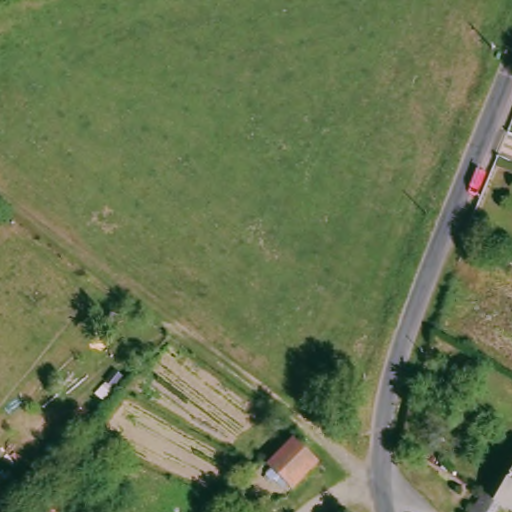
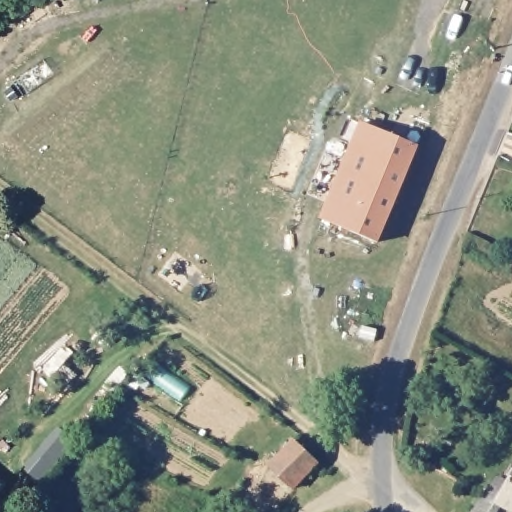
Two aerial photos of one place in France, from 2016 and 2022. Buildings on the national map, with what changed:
new [(380,239),(325,214),(368,117),(422,142),(380,239)]
unchanged [(321,463),(297,488),(275,467),(299,443),(321,463)]
unchanged [(509,512),(492,504),(488,512),(472,512),(477,500),(495,491),(500,482),(512,483),(512,512),(509,512)]

